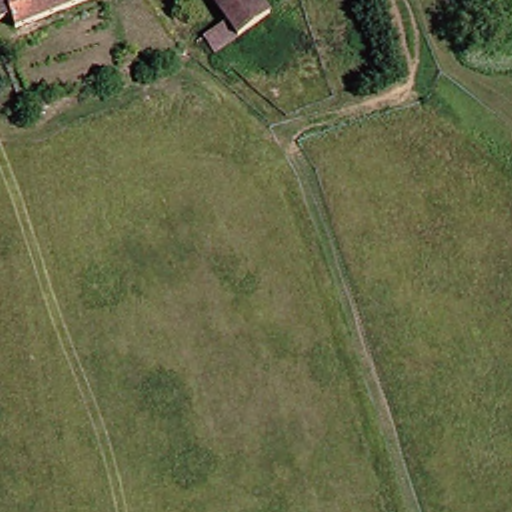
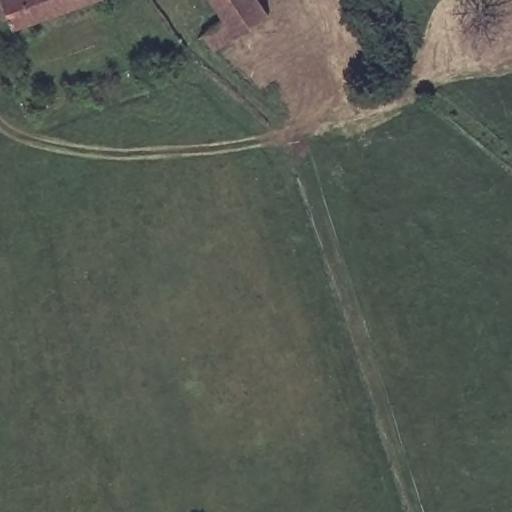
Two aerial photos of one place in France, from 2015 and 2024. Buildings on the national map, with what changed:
unchanged [(11,14),(0,18),(0,0),(97,0),(20,32),(11,14)]
unchanged [(215,56),(201,36),(230,14),(219,0),(254,0),(267,19),(215,56)]

